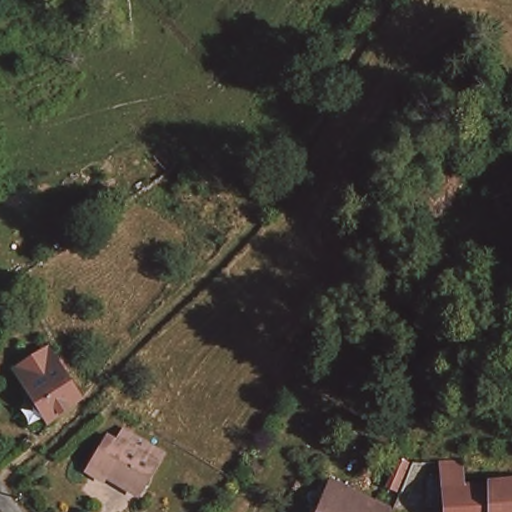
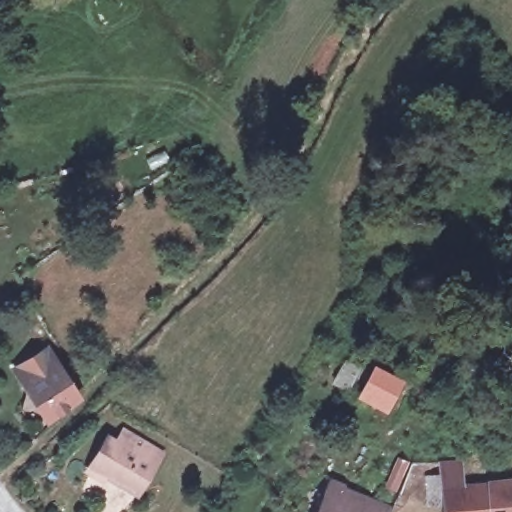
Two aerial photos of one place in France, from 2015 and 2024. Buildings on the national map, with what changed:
unchanged [(51,355),(77,397),(55,415),(35,385),(24,371),(51,355)]
new [(388,413),(358,396),(376,364),(405,381),(388,413)]
unchanged [(95,474),(100,467),(116,440),(127,446),(137,432),(144,437),(170,454),(145,495),(112,476),(108,482),(95,474)]
unchanged [(512,477),(512,512),(439,512),(439,486),(439,462),(456,461),(456,485),(482,485),(488,477),(512,477)]
unchanged [(389,512),(314,512),(321,498),(331,478),(391,508),(389,512)]

